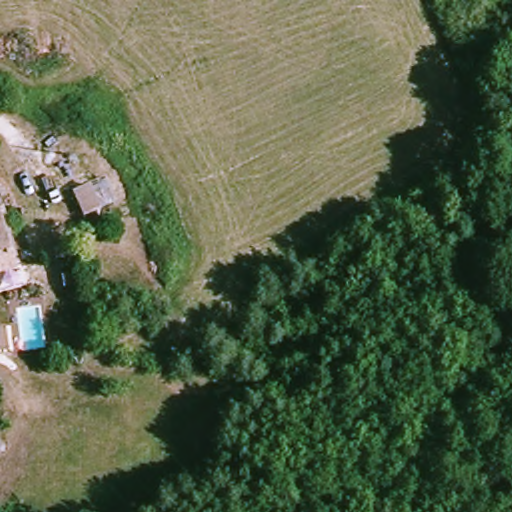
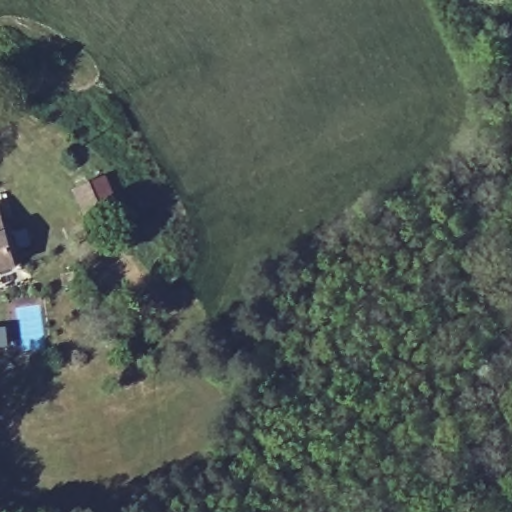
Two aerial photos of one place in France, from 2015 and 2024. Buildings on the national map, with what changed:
unchanged [(101,217),(87,221),(80,199),(94,194),(101,217)]
unchanged [(27,266),(0,274),(0,210),(9,207),(27,266)]
unchanged [(78,285),(68,286),(67,276),(77,275),(78,285)]

